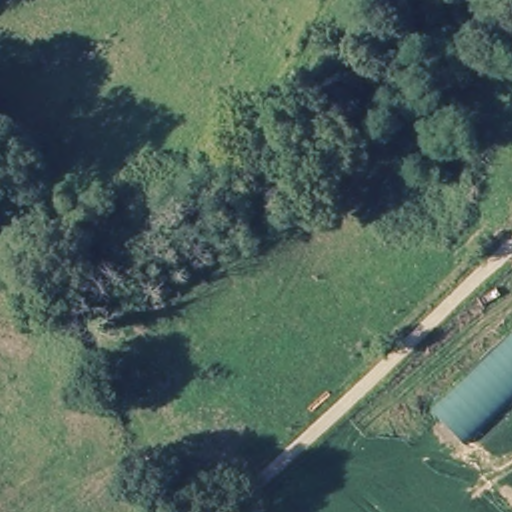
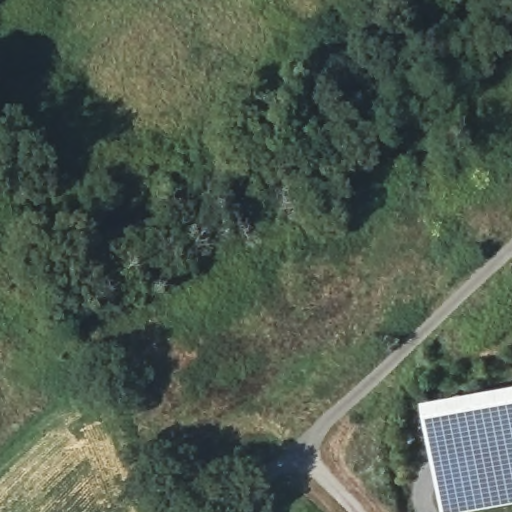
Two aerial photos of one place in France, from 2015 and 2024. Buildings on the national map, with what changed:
demolished [(512,401),(465,446),(434,413),(512,340),(512,401)]
new [(512,389),(512,504),(468,512),(441,512),(421,405),(512,389)]

